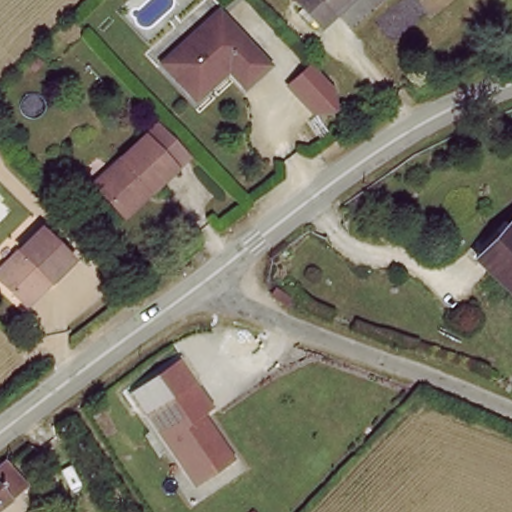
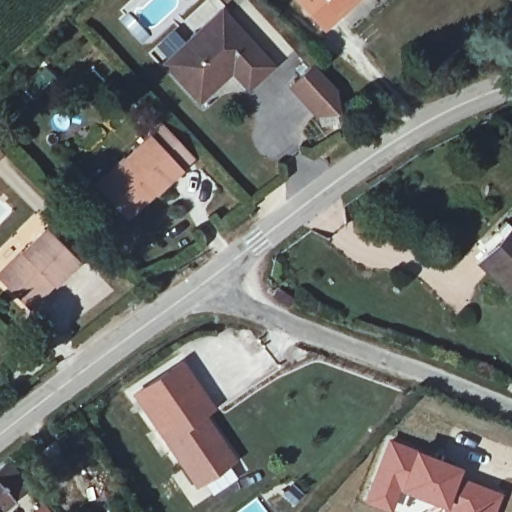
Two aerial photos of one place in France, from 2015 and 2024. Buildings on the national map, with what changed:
unchanged [(206,0),(210,0),(208,1),(206,0)]
unchanged [(344,12),(328,27),(301,0),(347,0),(340,7),(344,12)]
unchanged [(198,94),(168,64),(225,10),(275,62),(252,85),(236,68),(203,99),(198,94)]
unchanged [(323,120),(294,87),(314,67),(348,101),(323,120)]
unchanged [(150,137),(180,169),(158,190),(151,189),(126,212),(100,185),(150,137)]
unchanged [(476,255),(512,219),(512,285),(510,288),(476,255)]
unchanged [(0,279),(0,268),(40,227),(75,260),(50,283),(26,305),(20,299),(0,279)]
new [(136,390),(183,359),(198,384),(153,414),(136,390)]
unchanged [(188,467),(153,414),(198,384),(215,408),(205,415),(213,427),(216,432),(236,461),(213,476),(200,485),(188,467)]
new [(386,437),(462,465),(458,475),(442,507),(399,490),(390,512),(362,502),(386,437)]
unchanged [(0,467),(6,461),(27,486),(0,509),(0,467)]
new [(442,507),(458,475),(502,491),(494,512),(440,512),(442,507)]
unchanged [(27,510),(39,500),(49,512),(28,512),(27,510)]

